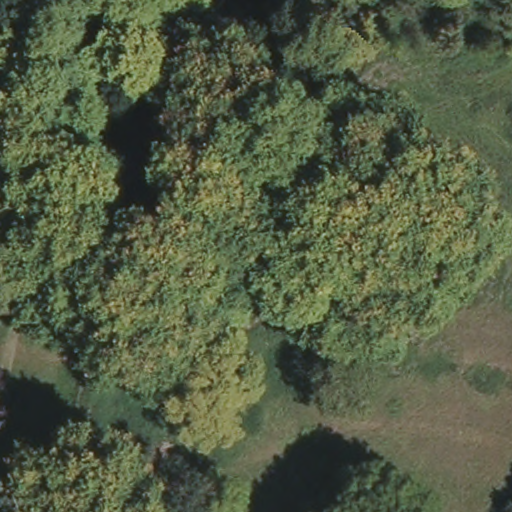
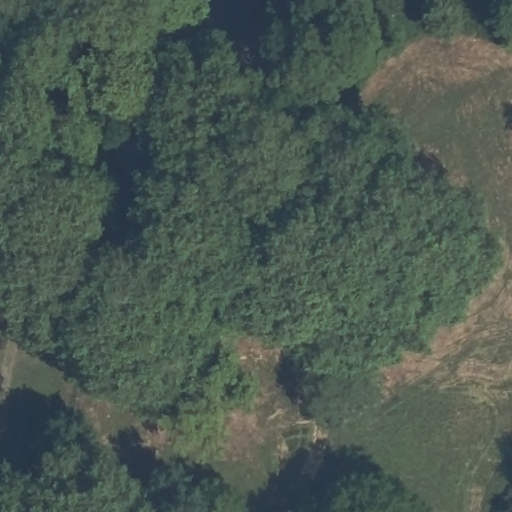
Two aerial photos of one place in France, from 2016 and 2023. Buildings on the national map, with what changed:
unchanged [(176,122),(189,124),(188,134),(175,132),(176,122)]

